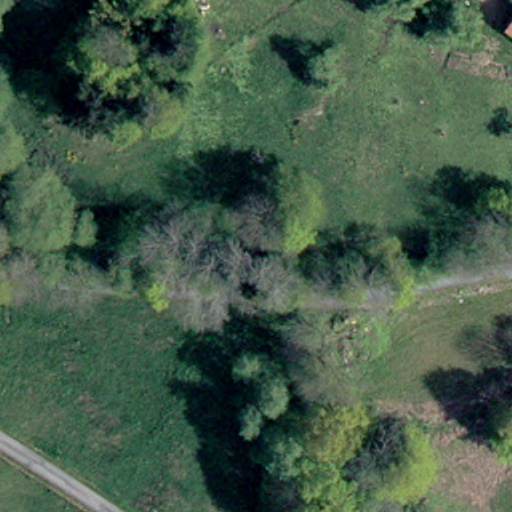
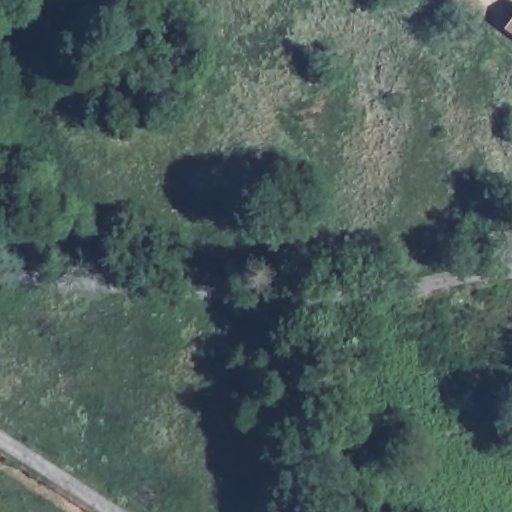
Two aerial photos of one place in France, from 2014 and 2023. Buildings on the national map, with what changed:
unchanged [(512,42),(504,36),(512,25),(512,42)]

